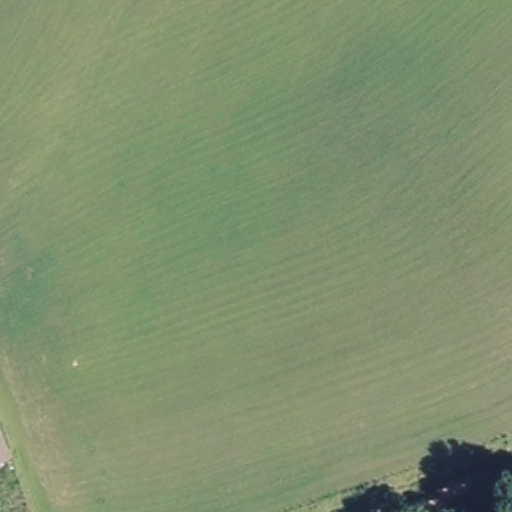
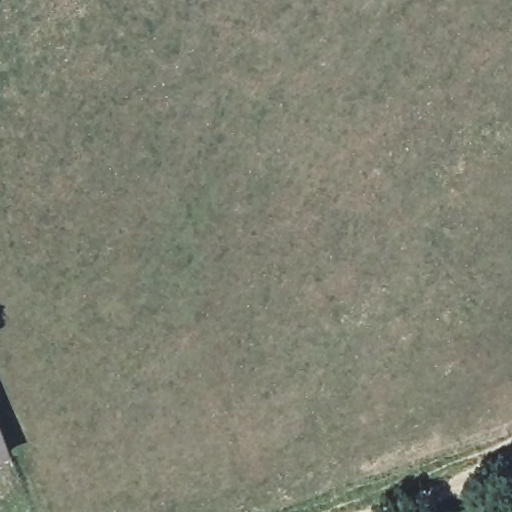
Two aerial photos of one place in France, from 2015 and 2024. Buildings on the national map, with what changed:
unchanged [(0,459),(0,413),(15,453),(0,459)]

